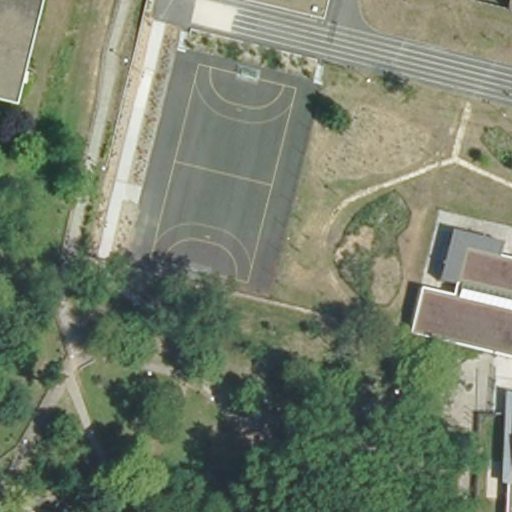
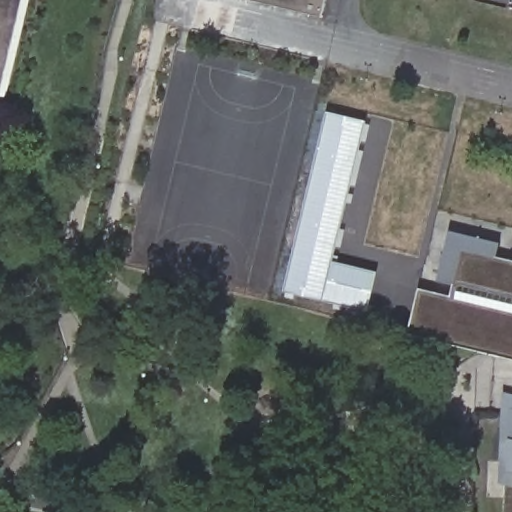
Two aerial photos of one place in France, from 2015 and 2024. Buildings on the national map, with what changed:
unchanged [(0,81),(0,0),(23,0),(4,81),(0,81)]
unchanged [(0,90),(0,81),(4,81),(23,0),(31,0),(9,92),(0,90)]
unchanged [(255,0),(326,0),(323,16),(255,0)]
new [(332,263),(376,274),(367,312),(285,292),(328,114),(366,123),(332,263)]
unchanged [(412,335),(421,289),(452,296),(455,287),(437,282),(451,231),(502,243),(499,257),(512,261),(512,359),(412,335)]
unchanged [(507,486),(501,485),(505,392),(512,393),(512,512),(504,512),(507,486)]

